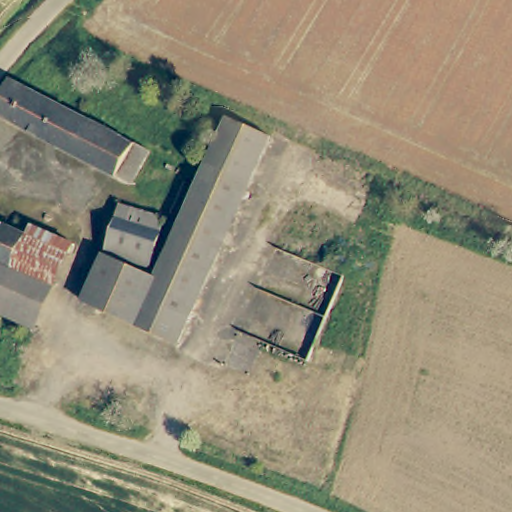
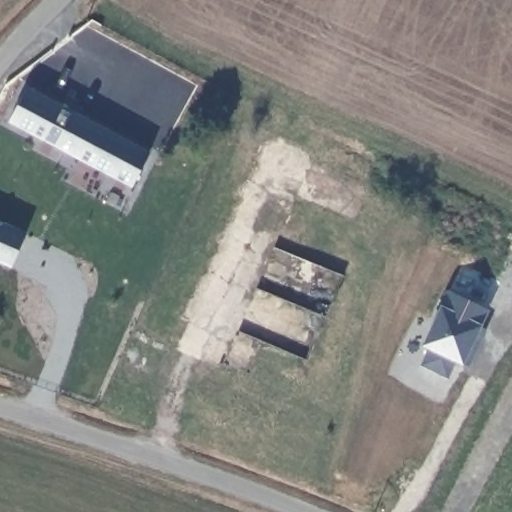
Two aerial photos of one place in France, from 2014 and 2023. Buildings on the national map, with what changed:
unchanged [(0,119),(0,100),(10,83),(147,154),(129,188),(0,119)]
demolished [(177,348),(81,305),(102,258),(154,281),(226,122),(271,142),(177,348)]
demolished [(113,222),(159,236),(147,270),(103,256),(113,222)]
unchanged [(0,229),(21,238),(7,270),(0,267),(0,229)]

